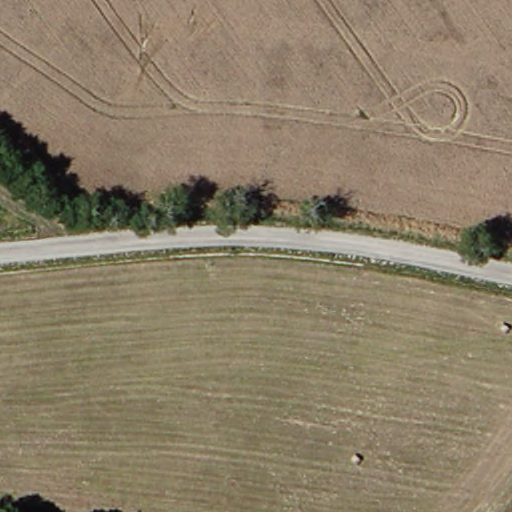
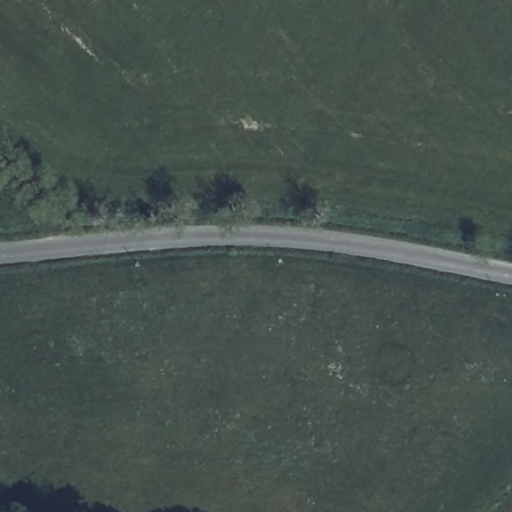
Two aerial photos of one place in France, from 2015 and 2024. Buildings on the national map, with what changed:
[]

